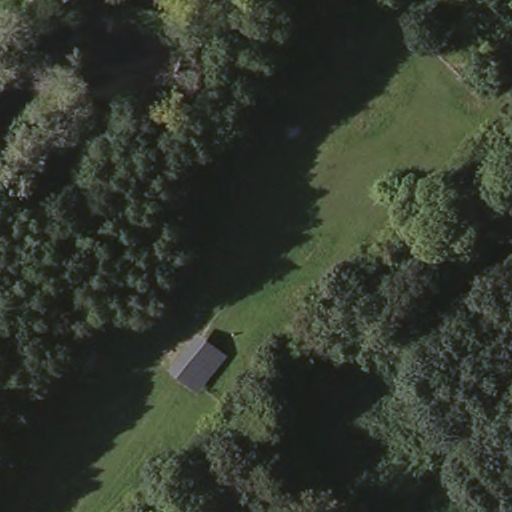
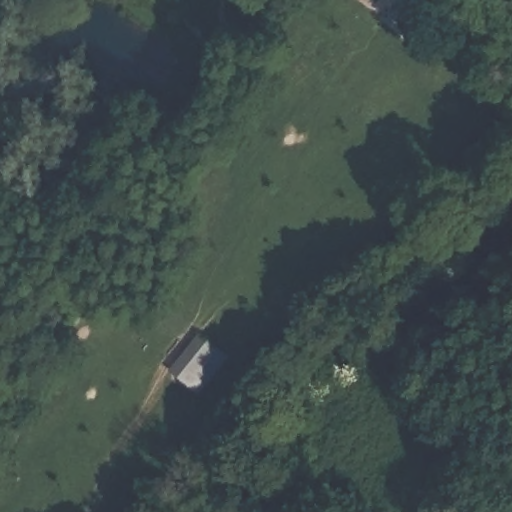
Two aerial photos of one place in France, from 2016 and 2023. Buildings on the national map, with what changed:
unchanged [(481,85),(470,97),(432,63),(442,51),(481,85)]
unchanged [(199,332),(228,357),(197,393),(169,368),(199,332)]

